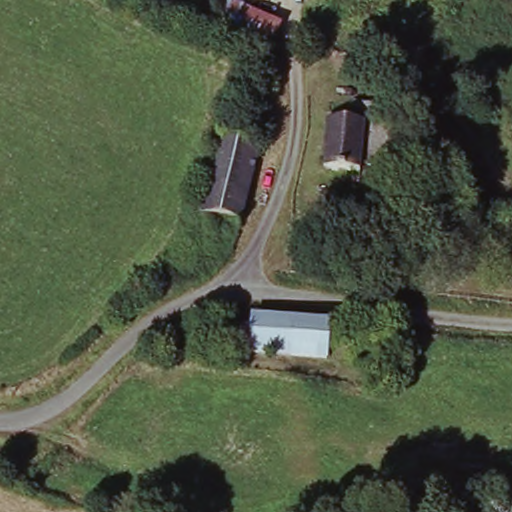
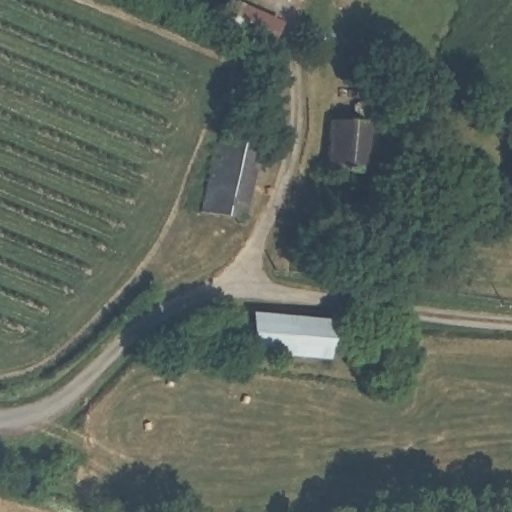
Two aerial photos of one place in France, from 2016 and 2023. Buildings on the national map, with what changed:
unchanged [(208,29),(218,7),(221,0),(237,0),(274,17),(269,31),(260,52),(208,29)]
unchanged [(318,171),(323,118),(368,125),(362,175),(318,171)]
unchanged [(214,132),(250,139),(250,148),(241,189),(202,183),(214,132)]
unchanged [(202,183),(241,189),(235,218),(197,212),(202,183)]
unchanged [(328,365),(252,357),(253,345),(241,345),(243,327),(254,327),(255,315),(273,317),(330,325),(328,365)]

